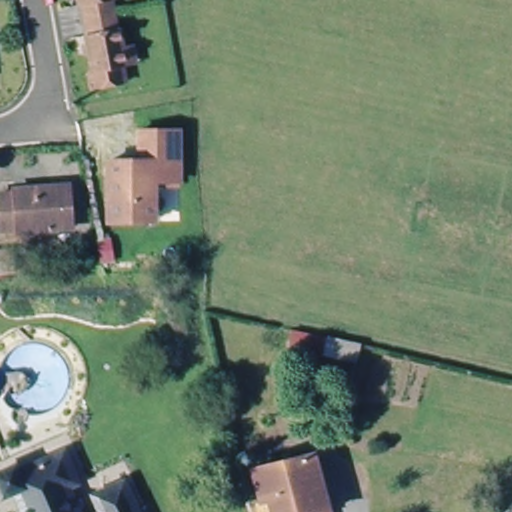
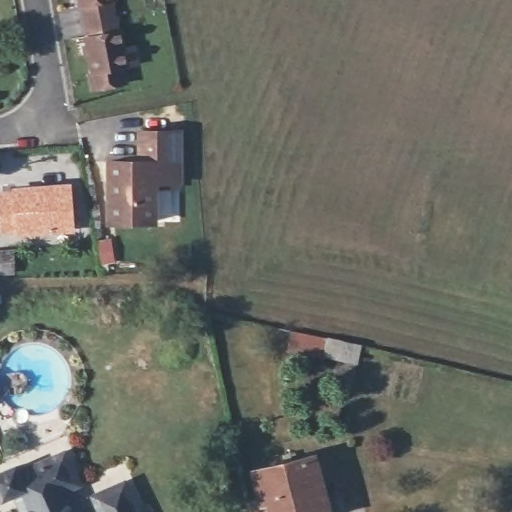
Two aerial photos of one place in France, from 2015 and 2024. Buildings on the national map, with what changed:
unchanged [(116,0),(116,4),(80,8),(79,0),(116,0)]
unchanged [(116,4),(121,33),(87,38),(80,8),(116,4)]
unchanged [(124,49),(132,47),(136,66),(127,68),(129,84),(91,89),(87,74),(95,72),(87,38),(121,33),(124,49)]
unchanged [(162,187),(142,185),(142,226),(99,227),(104,164),(129,165),(127,135),(160,135),(162,187)]
unchanged [(16,234),(16,228),(0,229),(0,219),(0,200),(15,199),(15,189),(64,185),(63,229),(16,234)]
unchanged [(0,271),(0,253),(3,253),(3,270),(0,271)]
unchanged [(361,346),(353,386),(289,365),(296,332),(361,346)]
unchanged [(263,497),(270,494),(265,463),(275,460),(324,449),(342,511),(339,512),(267,512),(263,497)]
unchanged [(13,478),(0,484),(0,470),(16,464),(21,475),(57,459),(64,456),(81,487),(72,493),(76,506),(78,512),(28,512),(13,478)]
unchanged [(98,496),(124,484),(131,501),(137,512),(104,512),(98,496)]

